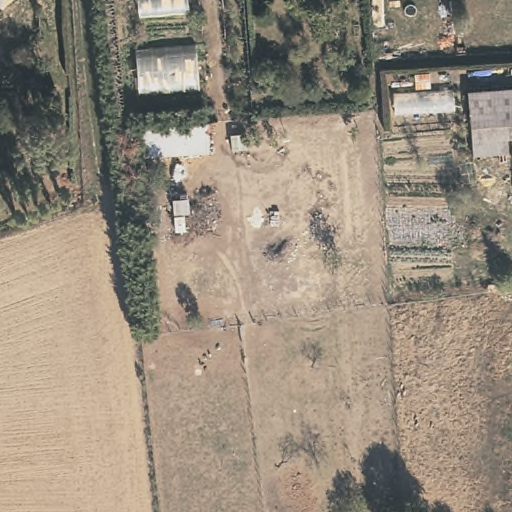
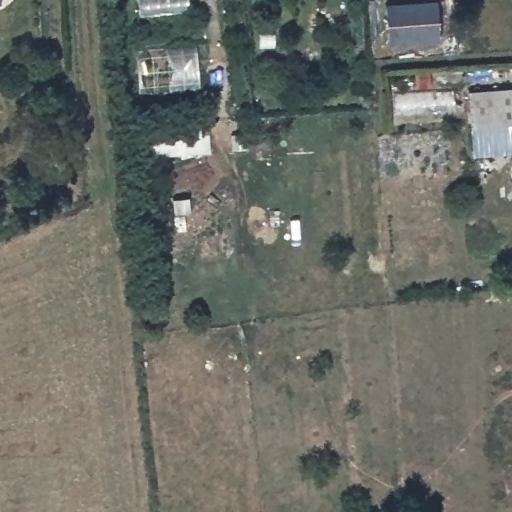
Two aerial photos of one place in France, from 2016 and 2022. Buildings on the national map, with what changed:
new [(438,1),(441,40),(390,44),(388,4),(438,1)]
unchanged [(512,85),(512,129),(510,120),(473,126),(469,90),(512,85)]
unchanged [(512,129),(512,137),(507,139),(508,152),(476,156),(473,126),(510,120),(512,129)]
unchanged [(209,126),(211,154),(136,159),(135,132),(209,126)]

